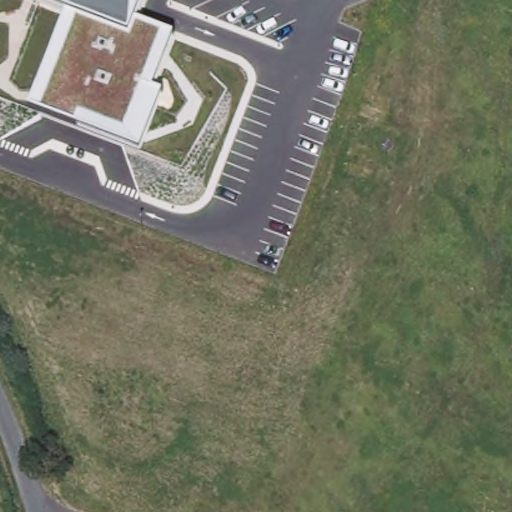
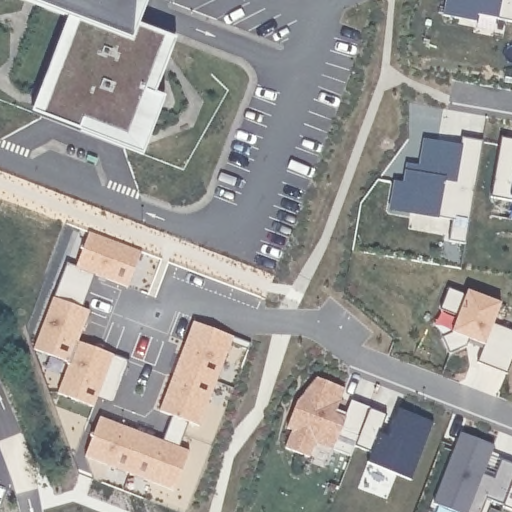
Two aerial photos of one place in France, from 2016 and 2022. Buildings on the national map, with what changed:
unchanged [(147,0),(137,25),(175,39),(155,95),(164,99),(143,157),(32,112),(70,19),(20,0),(147,0)]
new [(512,0),(512,11),(481,5),(479,12),(446,5),(447,0),(512,0)]
new [(391,210),(396,182),(405,184),(407,171),(409,164),(421,166),(426,140),(461,146),(463,136),(484,140),(466,244),(449,240),(453,220),(437,217),(414,213),(391,210)]
new [(512,146),(512,208),(490,204),(501,144),(512,146)]
new [(510,226),(512,211),(512,226),(510,226)]
new [(67,262),(76,266),(90,231),(142,251),(128,287),(96,274),(83,308),(90,310),(78,341),(130,361),(113,405),(97,398),(94,407),(58,393),(69,363),(34,350),(67,262)]
new [(467,347),(450,355),(443,337),(453,333),(459,317),(441,310),(450,288),(468,295),(469,291),(502,303),(494,323),(512,330),(512,364),(508,375),(478,363),(483,349),(469,343),(467,347)]
new [(100,417),(163,441),(172,416),(160,411),(194,321),(252,343),(249,350),(231,343),(199,426),(189,422),(180,447),(190,451),(175,490),(85,456),(100,417)]
new [(293,430),(288,428),(298,401),(318,378),(346,388),(336,414),(346,417),(352,401),(370,408),(356,446),(352,456),(316,442),(310,457),(286,448),(293,430)]
new [(370,408),(388,415),(381,433),(389,436),(399,408),(434,422),(412,480),(368,463),(372,452),(356,446),(370,408)]
new [(462,432),(495,445),(484,473),(495,477),(502,458),(512,463),(512,484),(505,503),(488,497),(482,512),(460,512),(435,502),(462,432)]
new [(505,503),(512,484),(512,510),(504,506),(505,503)]

